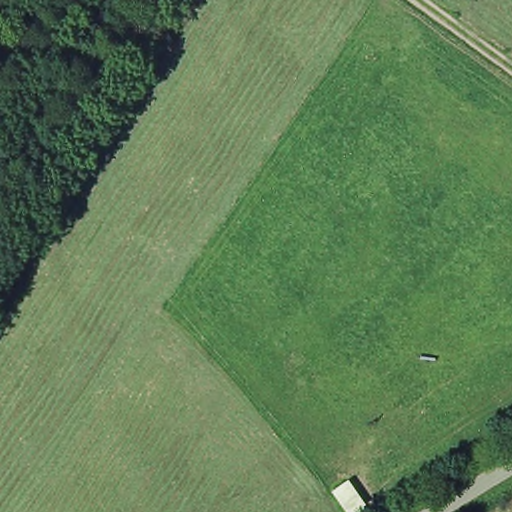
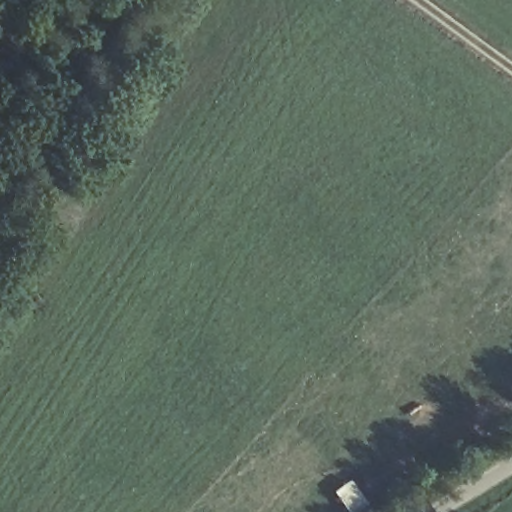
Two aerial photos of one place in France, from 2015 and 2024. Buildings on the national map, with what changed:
unchanged [(359,512),(337,512),(326,495),(345,480),(365,509),(359,512)]

